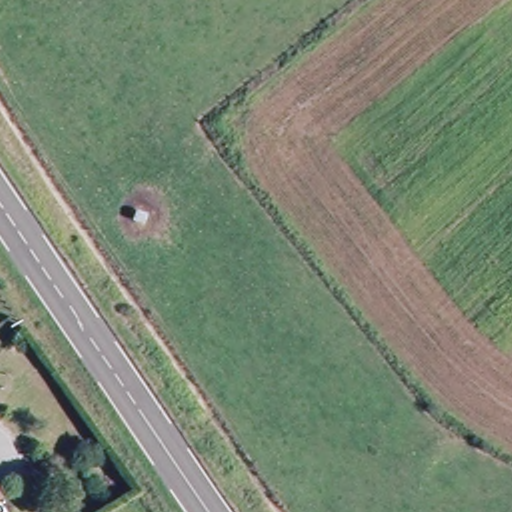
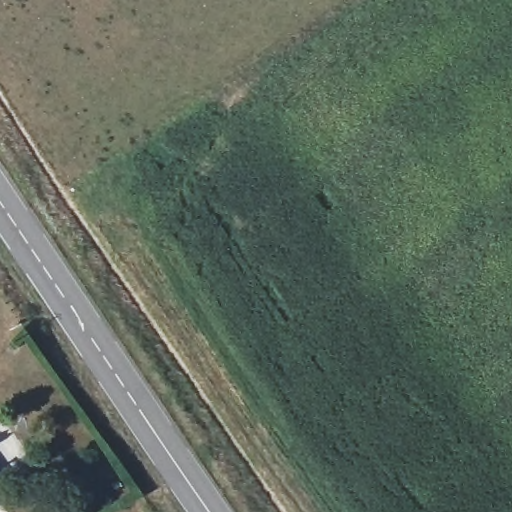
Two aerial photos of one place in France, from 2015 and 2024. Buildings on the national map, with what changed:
unchanged [(1,498),(0,499),(0,497),(1,498)]

